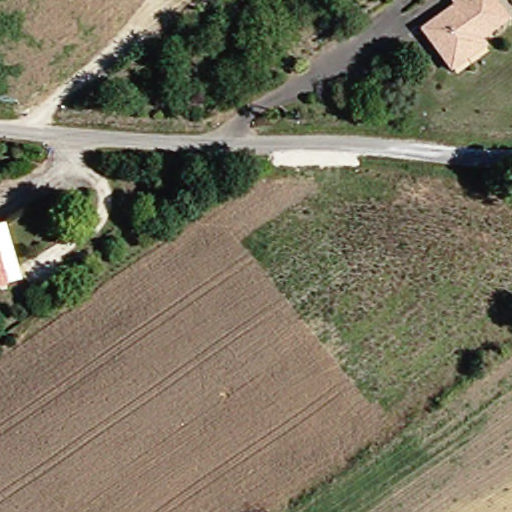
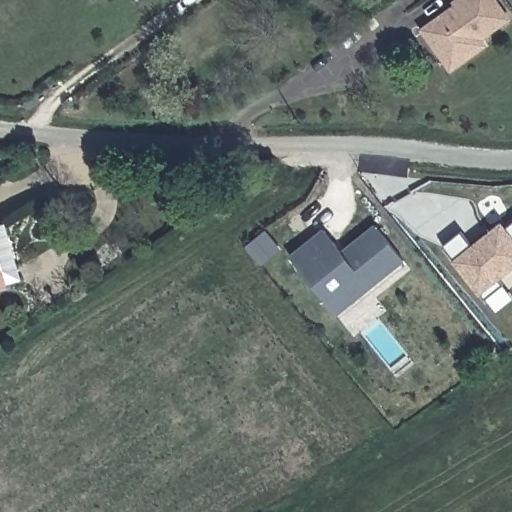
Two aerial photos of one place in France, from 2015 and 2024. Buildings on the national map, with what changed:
unchanged [(468,0),(498,0),(512,19),(512,21),(486,40),(490,45),(456,70),(427,30),(468,0)]
new [(501,280),(512,294),(512,300),(496,312),(445,245),(462,232),(472,245),(502,221),(508,228),(512,225),(512,272),(501,280)]
unchanged [(21,281),(0,287),(0,272),(2,271),(0,262),(0,225),(5,224),(21,281)]
new [(338,316),(290,257),(324,229),(341,251),(375,226),(405,262),(338,316)]
unchanged [(0,262),(2,271),(0,272),(0,262)]

